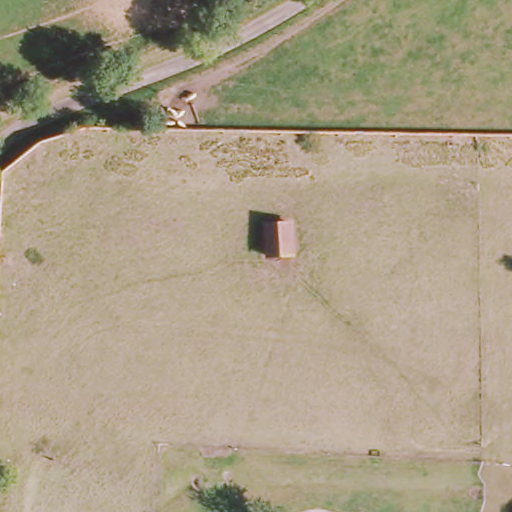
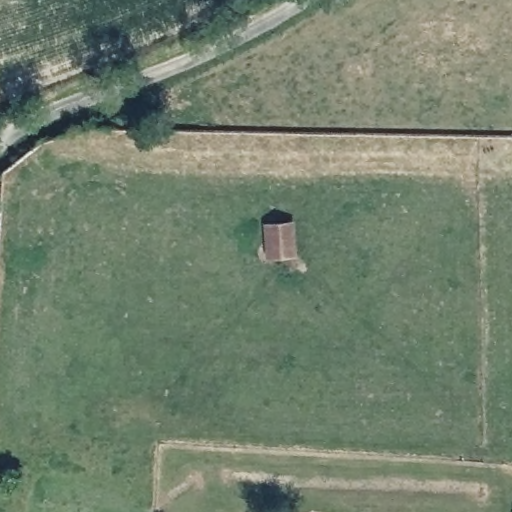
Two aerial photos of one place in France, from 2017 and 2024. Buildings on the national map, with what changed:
unchanged [(296,221),(296,258),(266,260),(266,221),(296,221)]

